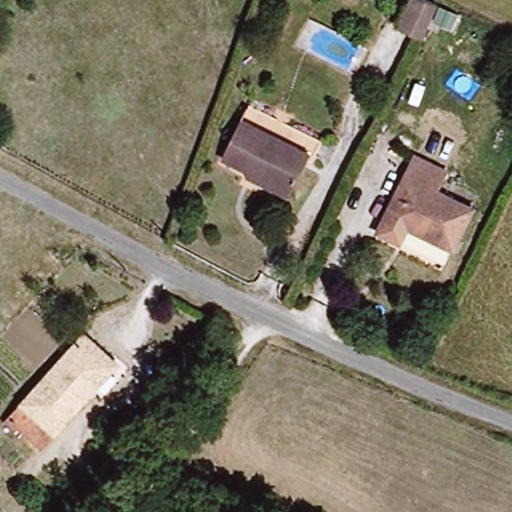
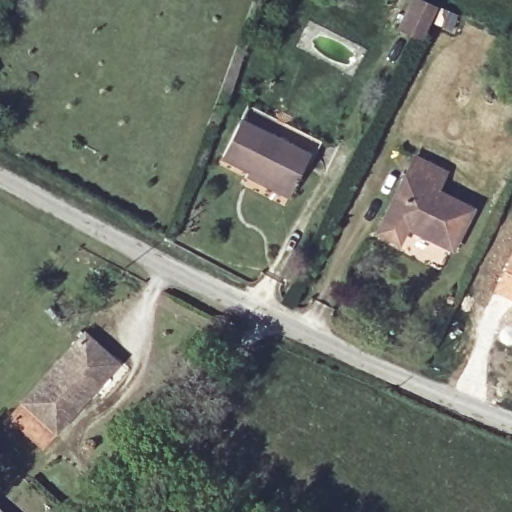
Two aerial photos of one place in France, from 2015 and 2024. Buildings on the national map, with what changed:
unchanged [(441,0),(443,1),(426,36),(404,25),(415,0),(441,0)]
unchanged [(288,200),(227,166),(253,113),(323,150),(317,161),(310,158),(288,200)]
unchanged [(465,243),(419,221),(412,238),(384,225),(408,170),(483,204),(465,243)]
new [(512,249),(512,300),(492,291),(512,249)]
unchanged [(85,333),(118,360),(45,448),(11,421),(85,333)]
unchanged [(0,508),(4,512),(0,512),(0,508)]

